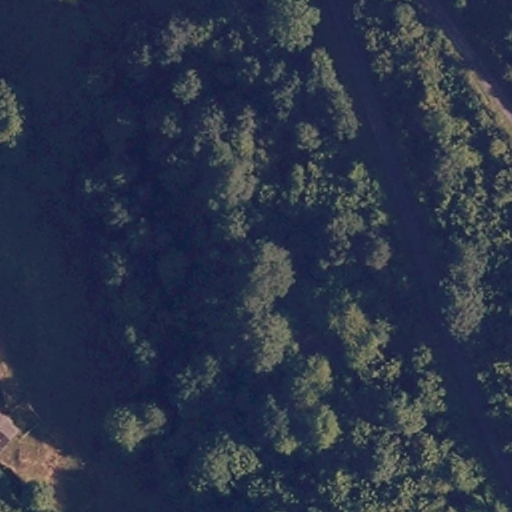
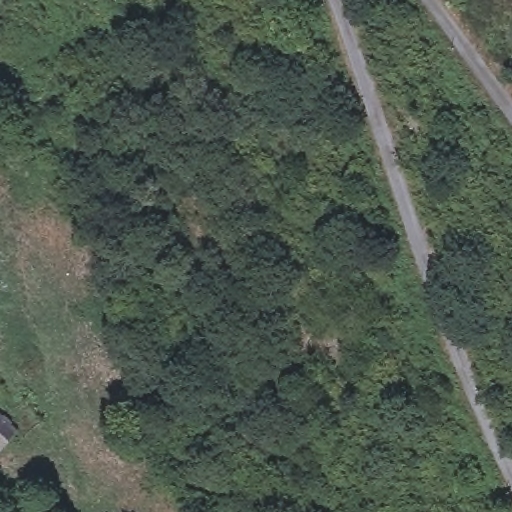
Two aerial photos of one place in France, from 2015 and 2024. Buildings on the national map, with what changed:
unchanged [(0,446),(0,417),(14,429),(0,446)]

